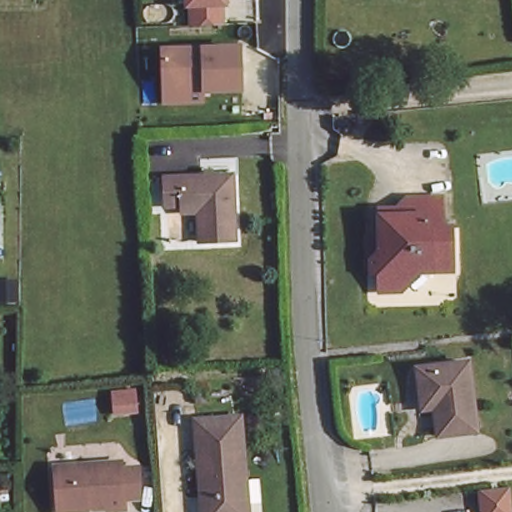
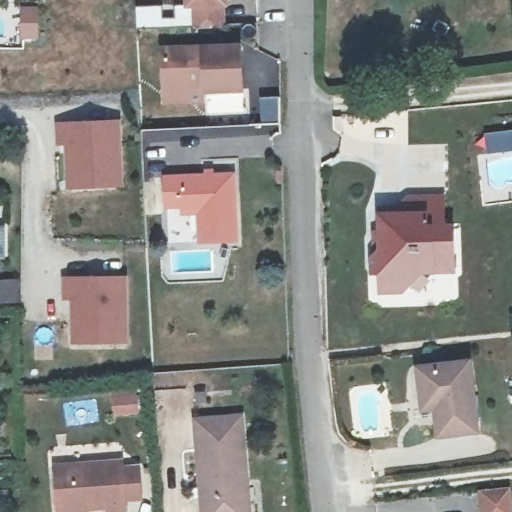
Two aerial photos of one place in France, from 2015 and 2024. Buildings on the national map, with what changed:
unchanged [(222,6),(222,25),(188,27),(188,0),(231,0),(231,6),(222,6)]
new [(20,5),(39,5),(39,38),(20,39),(20,5)]
unchanged [(246,93),(206,95),(202,104),(163,104),(163,46),(244,44),(246,93)]
new [(65,142),(58,143),(57,125),(117,122),(119,185),(68,187),(65,142)]
unchanged [(233,175),(236,241),(227,241),(200,243),(196,202),(168,203),(167,177),(223,175),(233,175)]
unchanged [(426,277),(408,292),(385,292),(384,281),(377,281),(376,266),(390,255),(389,248),(382,247),(381,224),(411,220),(411,207),(444,206),(444,234),(456,234),(458,276),(426,277)]
new [(73,342),(72,297),(65,297),(65,279),(123,277),(124,340),(73,342)]
unchanged [(419,392),(415,363),(467,360),(475,432),(436,436),(434,436),(431,407),(421,408),(419,392)]
unchanged [(197,420),(238,417),(246,481),(239,481),(242,512),(203,512),(197,420)]
unchanged [(117,510),(82,512),(47,512),(43,466),(113,459),(113,462),(117,506),(117,510)]
unchanged [(117,506),(113,462),(152,460),(155,503),(117,506)]
unchanged [(512,512),(490,512),(487,483),(512,481),(512,512)]

